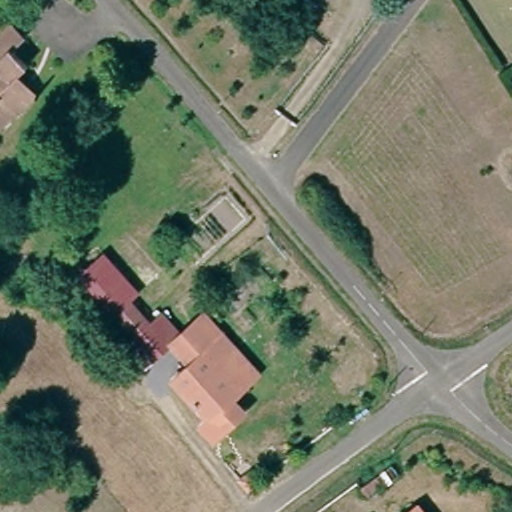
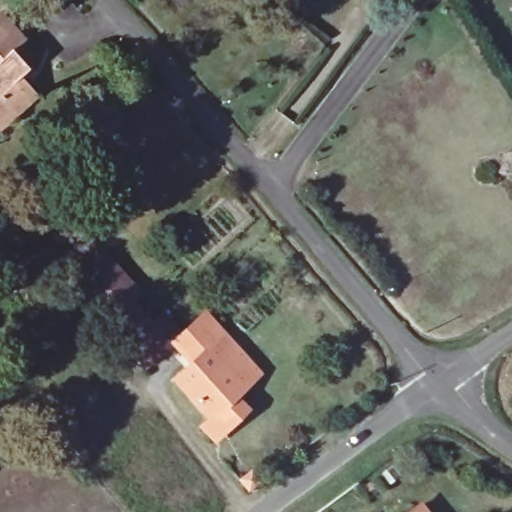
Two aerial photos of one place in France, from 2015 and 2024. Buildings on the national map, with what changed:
unchanged [(37,91),(0,125),(0,11),(24,39),(11,50),(25,66),(43,86),(37,91)]
unchanged [(161,271),(131,298),(115,313),(96,292),(143,251),(161,271)]
unchanged [(183,334),(174,342),(146,365),(127,343),(163,311),(183,334)]
unchanged [(192,361),(174,342),(183,334),(206,316),(221,335),(192,361)]
unchanged [(209,419),(173,378),(192,361),(221,335),(258,376),(241,391),(252,403),(220,432),(209,419)]
unchanged [(424,512),(409,512),(418,505),(424,512)]

